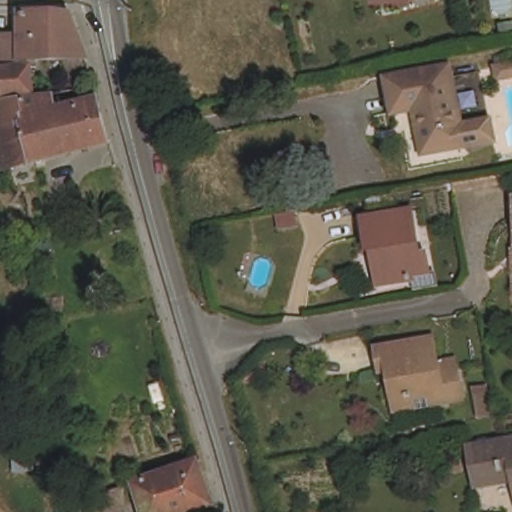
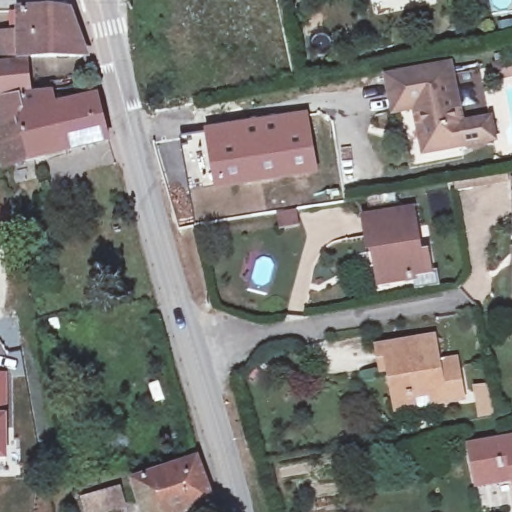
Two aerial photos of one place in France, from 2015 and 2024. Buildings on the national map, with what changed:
unchanged [(369,0),(389,0),(370,5),(369,0)]
unchanged [(25,92),(0,92),(0,35),(12,36),(23,36),(23,12),(75,13),(86,57),(22,56),(25,92)]
unchanged [(512,53),(512,63),(495,67),(493,57),(512,53)]
unchanged [(462,63),(479,140),(437,149),(427,106),(409,110),(400,77),(462,63)]
unchanged [(25,92),(50,92),(55,112),(99,103),(110,142),(35,160),(27,121),(0,126),(0,92),(25,92)]
new [(307,110),(320,175),(214,193),(204,130),(307,110)]
unchanged [(27,121),(35,160),(0,169),(0,126),(27,121)]
new [(509,174),(510,183),(458,192),(456,183),(509,174)]
unchanged [(413,276),(414,281),(383,287),(378,265),(385,263),(383,252),(372,254),(365,222),(414,212),(422,253),(430,252),(434,271),(413,276)]
unchanged [(395,402),(389,373),(384,373),(379,352),(435,340),(439,361),(452,358),(455,368),(462,399),(433,405),(399,412),(395,402)]
new [(10,416),(10,462),(0,461),(0,375),(7,375),(10,416)]
unchanged [(472,447),(512,439),(512,479),(480,485),(472,447)]
unchanged [(217,511),(214,512),(140,512),(132,485),(206,464),(217,511)]
unchanged [(110,509),(98,512),(82,512),(78,498),(125,486),(134,512),(111,512),(110,509)]

